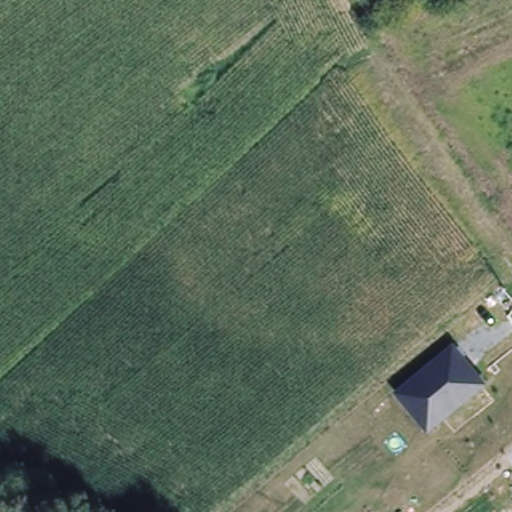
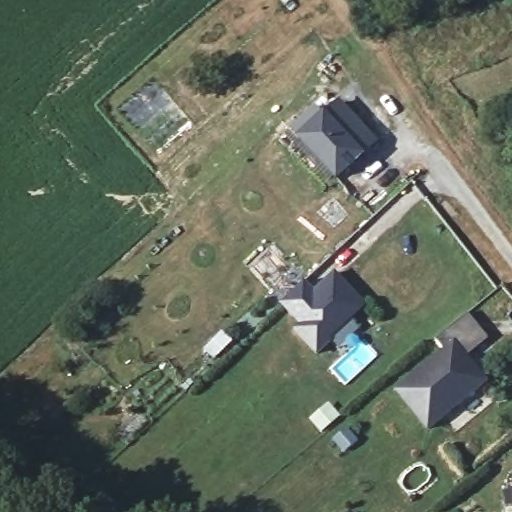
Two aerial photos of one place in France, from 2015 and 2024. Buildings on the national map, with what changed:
new [(368,149),(331,183),(295,143),(286,132),(309,111),(319,123),(333,110),(368,149)]
new [(330,339),(333,343),(317,355),(294,330),(299,325),(282,305),(305,283),(313,291),(333,274),(366,308),(330,339)]
unchanged [(445,348),(437,340),(467,315),(488,340),(466,356),(453,341),(445,348)]
unchanged [(488,383),(428,431),(394,390),(453,341),(488,383)]
new [(325,407),(334,418),(320,430),(311,420),(325,407)]
new [(345,427),(356,440),(343,450),(333,438),(345,427)]
unchanged [(512,510),(507,510),(507,495),(512,495),(512,510)]

